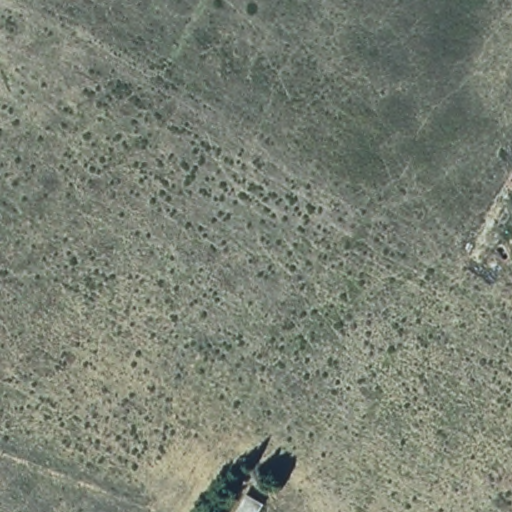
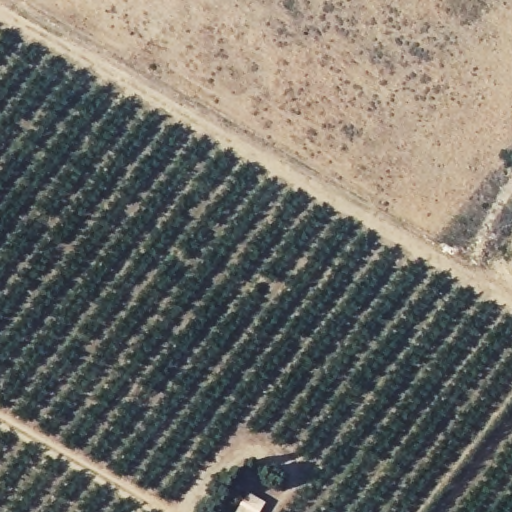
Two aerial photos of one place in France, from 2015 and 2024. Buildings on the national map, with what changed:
unchanged [(270,497),(262,512),(231,512),(247,484),(270,497)]

